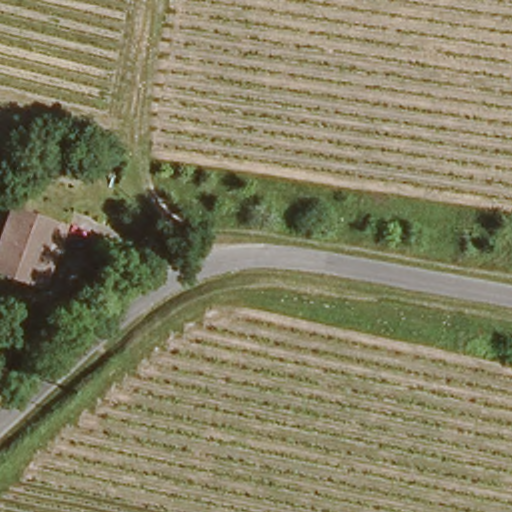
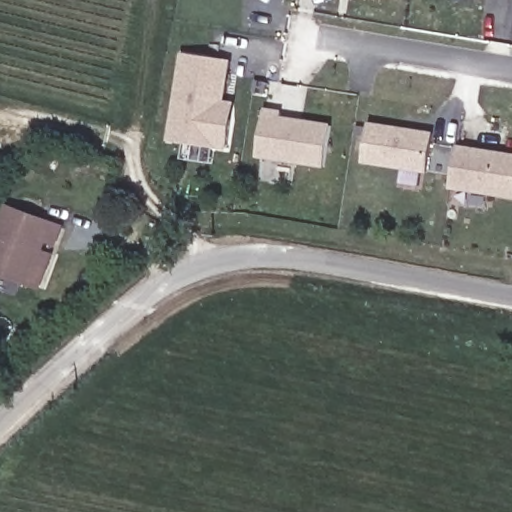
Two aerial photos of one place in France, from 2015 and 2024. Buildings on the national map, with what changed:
new [(222,121),(218,149),(169,140),(182,55),(222,62),(217,96),(212,95),(211,102),(225,105),(222,121)]
new [(263,111),(280,113),(278,119),(329,127),(323,167),(256,156),(263,111)]
new [(366,125),(427,134),(421,171),(361,162),(366,125)]
new [(457,148),(512,157),(512,197),(451,187),(457,148)]
unchanged [(14,291),(0,279),(0,249),(40,204),(69,229),(52,248),(64,257),(25,301),(14,291)]

